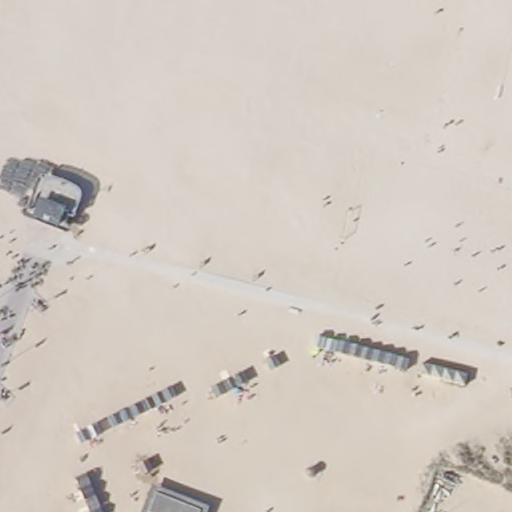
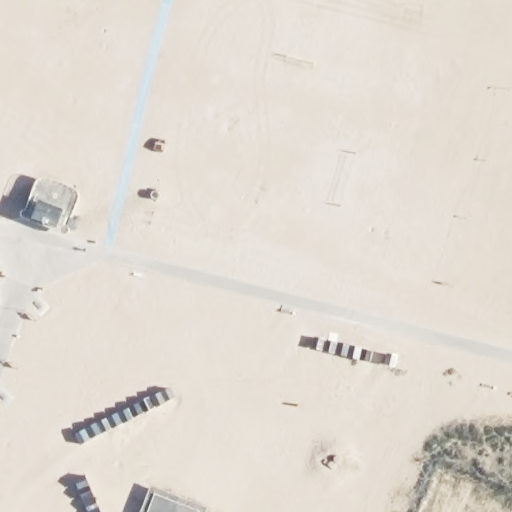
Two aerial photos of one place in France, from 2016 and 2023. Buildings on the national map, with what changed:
unchanged [(45,185),(49,186),(55,187),(60,190),(66,192),(71,195),(75,197),(60,231),(27,217),(41,184),(45,185)]
unchanged [(151,483),(206,506),(204,512),(140,512),(151,483)]

